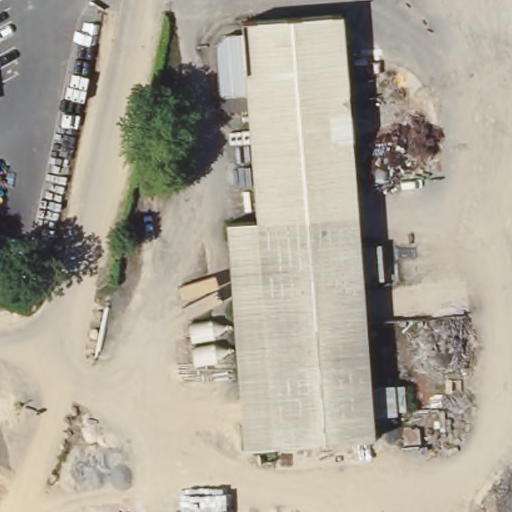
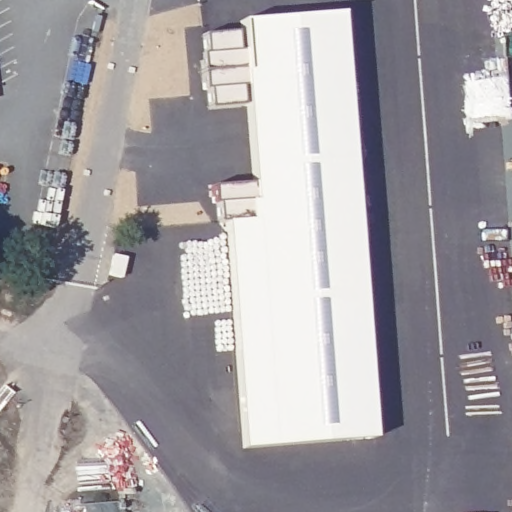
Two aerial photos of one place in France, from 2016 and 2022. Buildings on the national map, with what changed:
unchanged [(290,13),(289,0),(341,0),(342,9),(290,13)]
unchanged [(274,454),(274,441),(244,443),(228,217),(257,216),(249,105),(220,107),(215,41),(225,30),(243,29),(242,17),(290,13),(342,9),(349,109),(368,107),(369,132),(352,135),(370,383),(403,381),(404,406),(372,408),(374,433),(299,439),(299,452),(274,454)]

